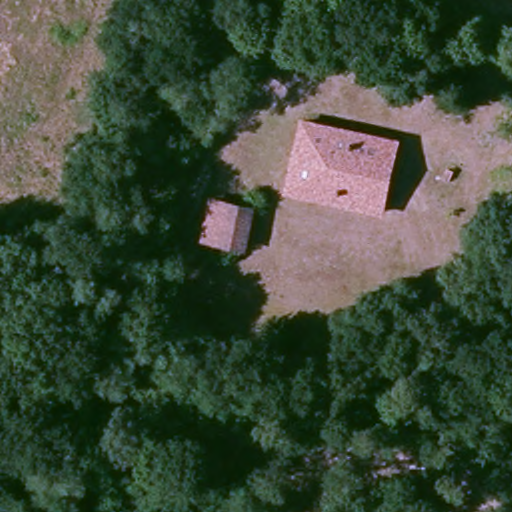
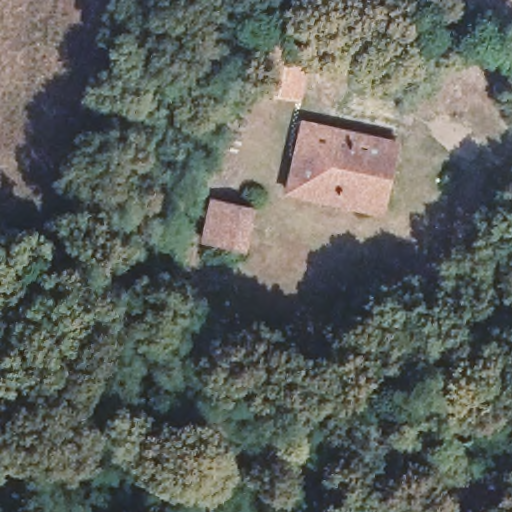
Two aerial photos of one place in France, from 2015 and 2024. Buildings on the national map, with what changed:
unchanged [(401,143),(386,214),(290,193),(306,122),(401,143)]
unchanged [(207,197),(253,204),(247,242),(246,249),(200,242),(201,234),(207,197)]

